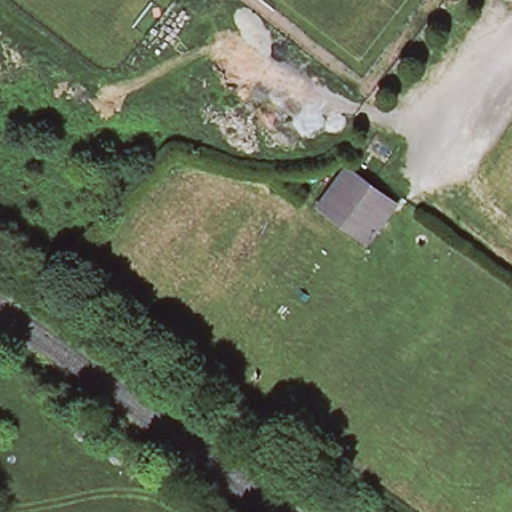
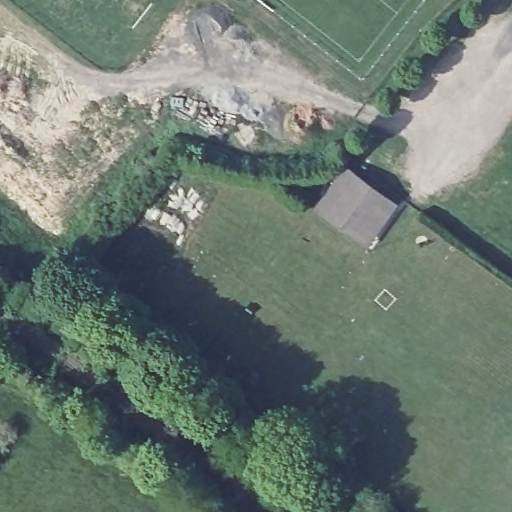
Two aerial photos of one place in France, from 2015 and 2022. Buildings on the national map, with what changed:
unchanged [(384,200),(359,231),(333,210),(324,203),(349,171),(358,179),(384,200)]
unchanged [(359,231),(384,200),(398,210),(367,248),(319,210),(324,203),(333,210),(359,231)]

